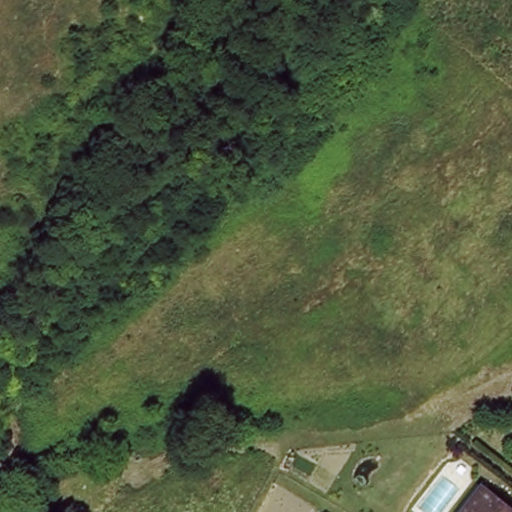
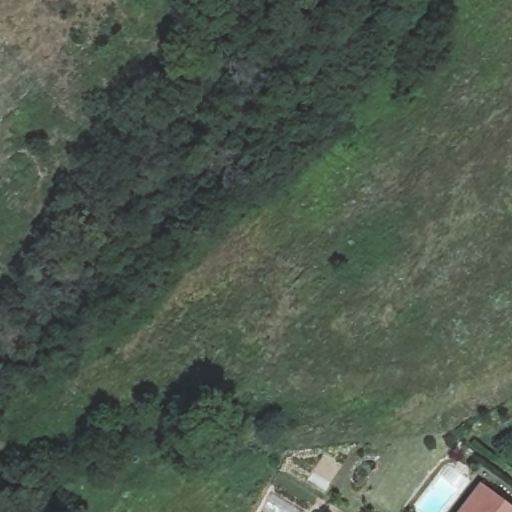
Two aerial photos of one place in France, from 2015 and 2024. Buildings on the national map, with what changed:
unchanged [(483,491),(506,512),(464,512),(483,491)]

